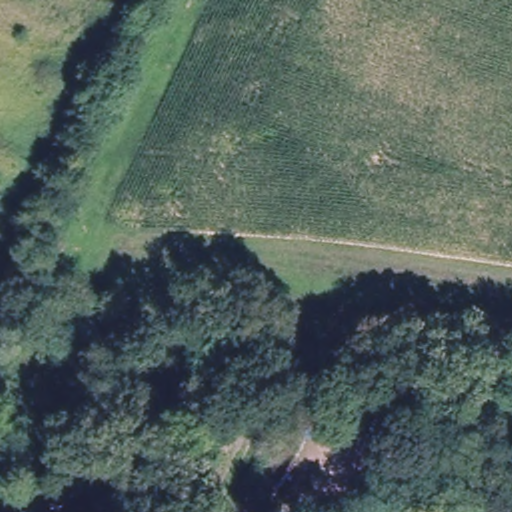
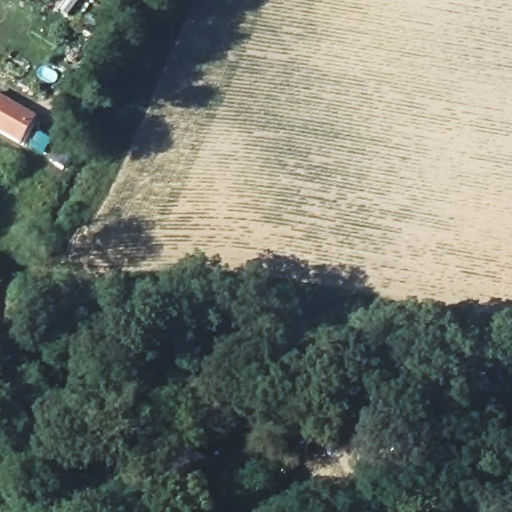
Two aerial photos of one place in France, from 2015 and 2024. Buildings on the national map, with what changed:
new [(36,118),(20,144),(0,131),(0,96),(36,118)]

